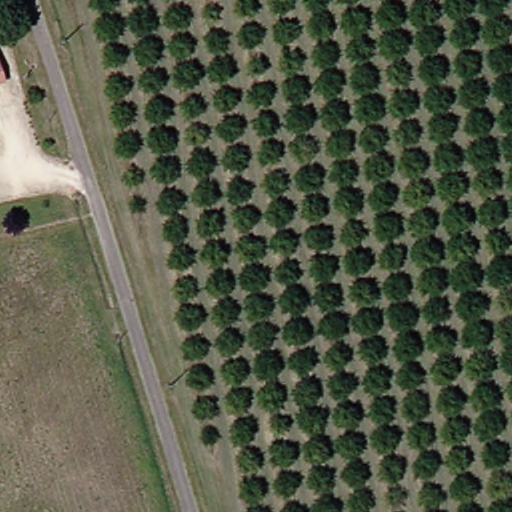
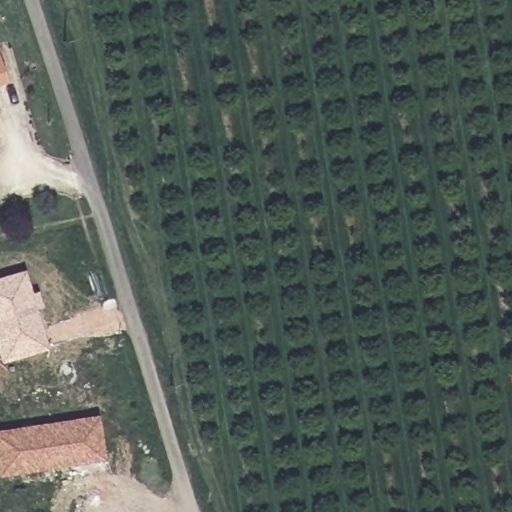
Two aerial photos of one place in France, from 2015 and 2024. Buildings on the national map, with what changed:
new [(25,271),(46,351),(0,364),(0,278),(25,271)]
new [(97,416),(104,462),(0,478),(0,431),(97,416)]

